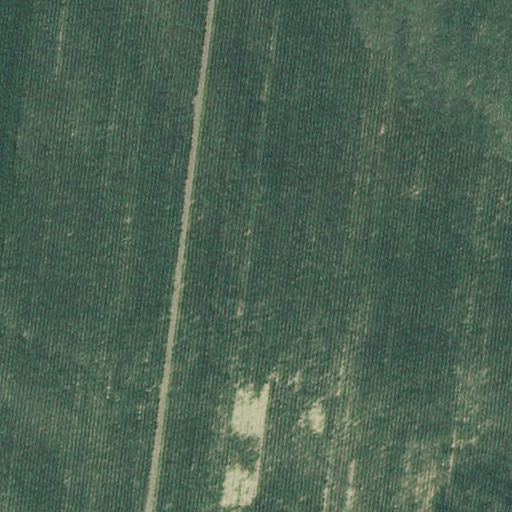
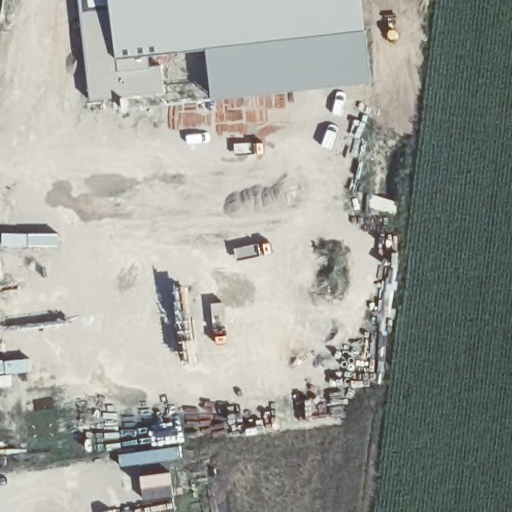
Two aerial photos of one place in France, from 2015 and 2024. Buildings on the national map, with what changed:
new [(371,84),(209,98),(204,51),(161,52),(164,94),(86,100),(75,0),(362,0),(365,30),(371,84)]

